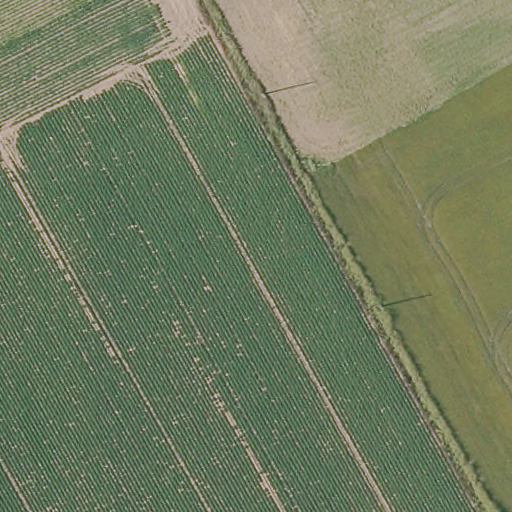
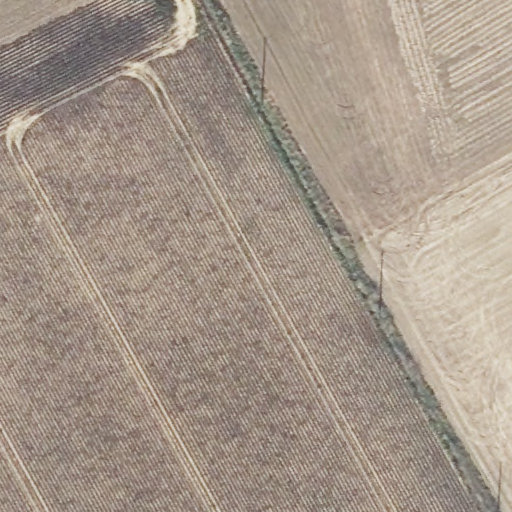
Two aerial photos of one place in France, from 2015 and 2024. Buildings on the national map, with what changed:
[]

